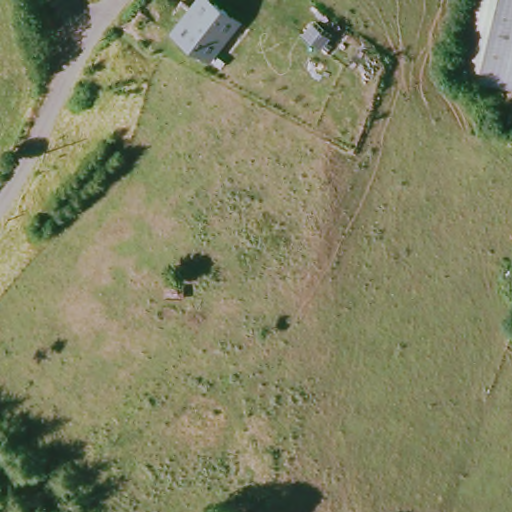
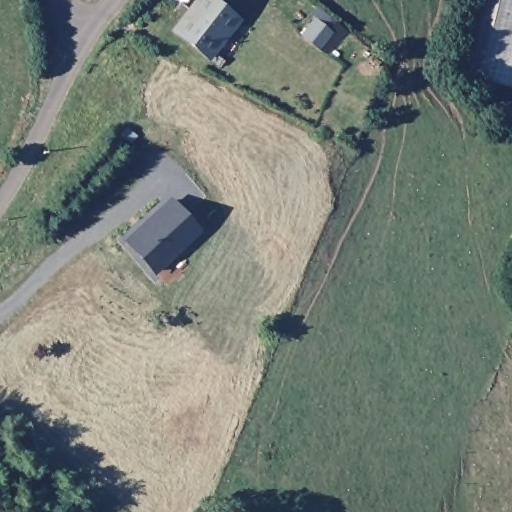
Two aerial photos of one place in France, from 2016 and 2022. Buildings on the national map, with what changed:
unchanged [(201,58),(168,32),(194,0),(201,0),(229,23),(201,58)]
unchanged [(444,68),(461,0),(512,0),(512,87),(444,71),(444,68)]
new [(312,25),(335,42),(326,55),(303,36),(312,25)]
new [(203,233),(154,275),(123,241),(170,196),(203,233)]

